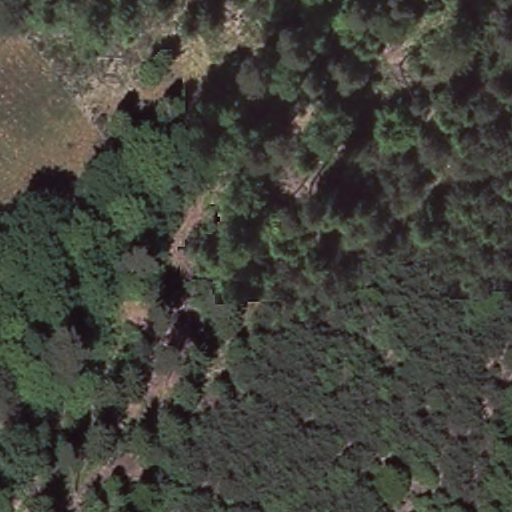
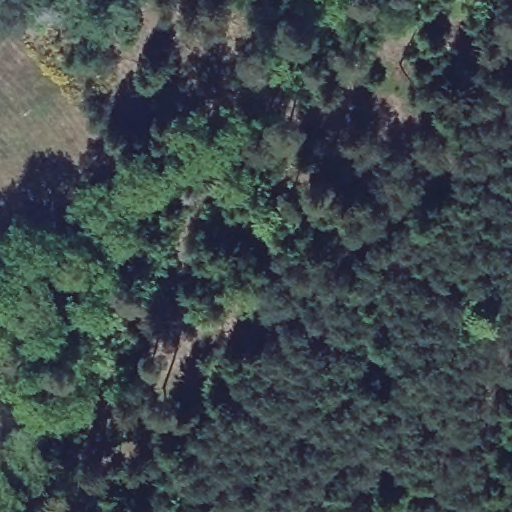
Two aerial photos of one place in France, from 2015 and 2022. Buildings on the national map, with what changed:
[]

